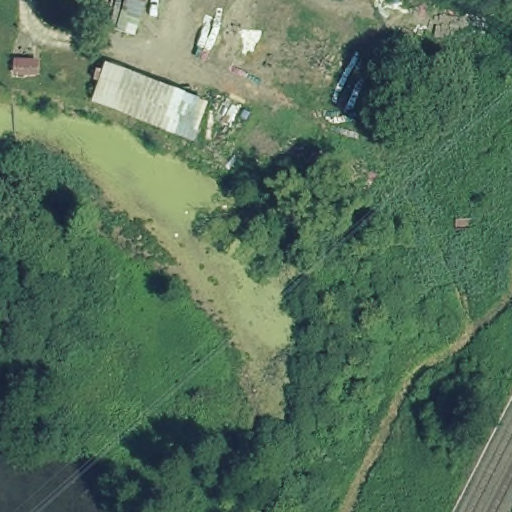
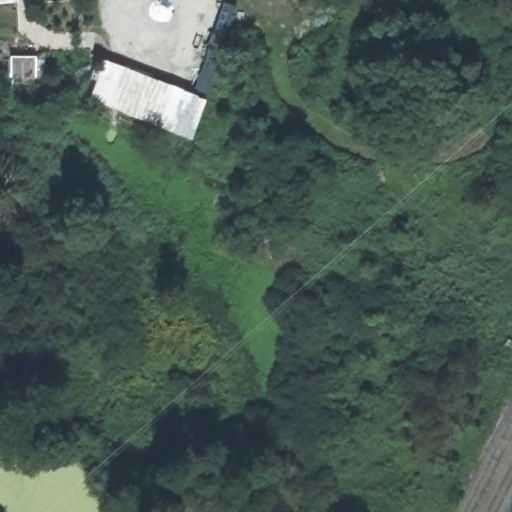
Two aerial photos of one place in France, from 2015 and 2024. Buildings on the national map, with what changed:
unchanged [(192,139),(87,97),(100,58),(205,100),(192,139)]

